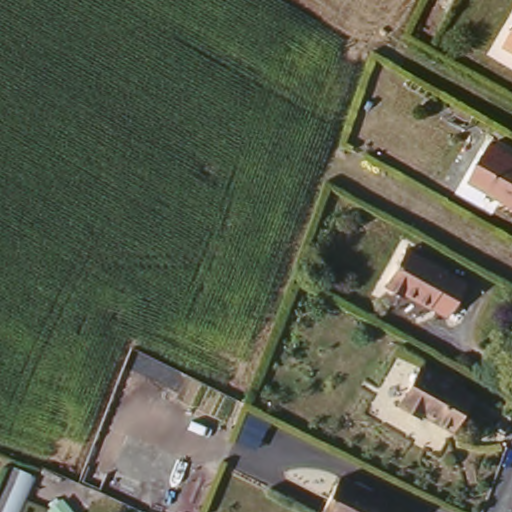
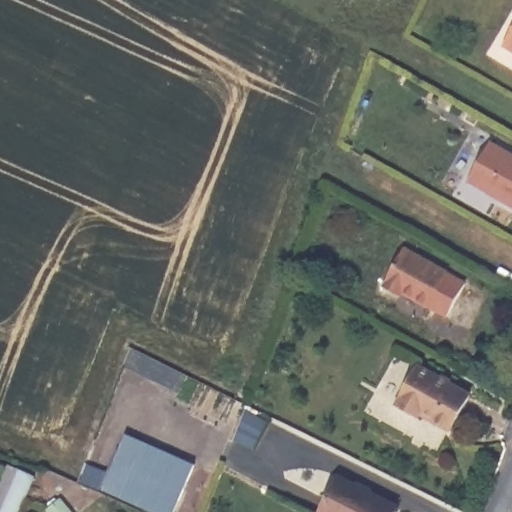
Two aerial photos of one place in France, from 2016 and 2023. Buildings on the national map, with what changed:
unchanged [(512,40),(512,57),(505,52),(512,40)]
unchanged [(512,197),(472,174),(491,141),(512,153),(512,197)]
unchanged [(464,285),(444,320),(399,293),(396,299),(379,289),(401,249),(464,285)]
unchanged [(473,389),(452,427),(426,414),(424,417),(401,405),(424,361),(473,389)]
new [(126,435),(195,466),(174,512),(145,512),(102,491),(126,435)]
unchanged [(22,512),(2,512),(0,511),(0,493),(16,461),(41,473),(22,512)]
unchanged [(392,512),(322,512),(338,477),(396,505),(392,512)]

